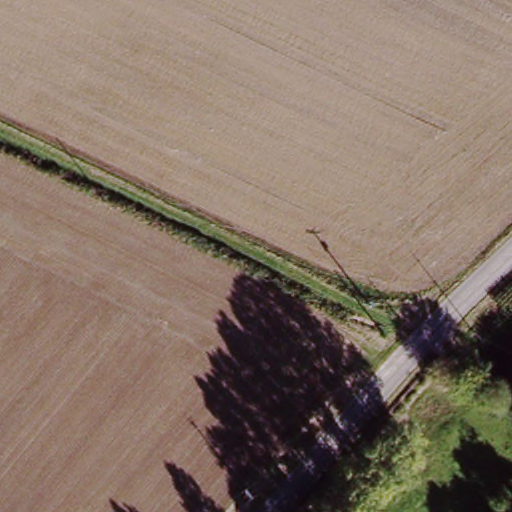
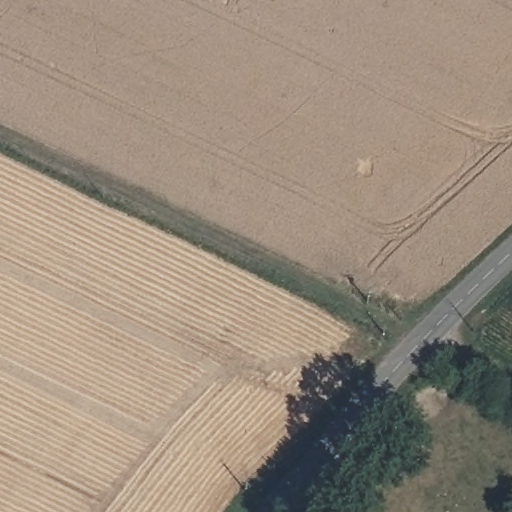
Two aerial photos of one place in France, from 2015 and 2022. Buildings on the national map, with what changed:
unchanged [(476,309),(465,321),(458,316),(470,304),(476,309)]

